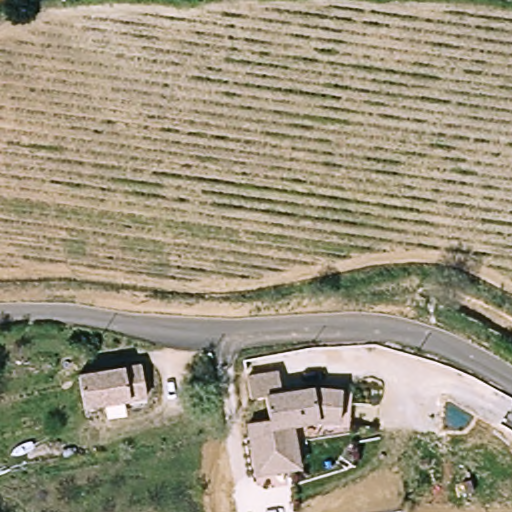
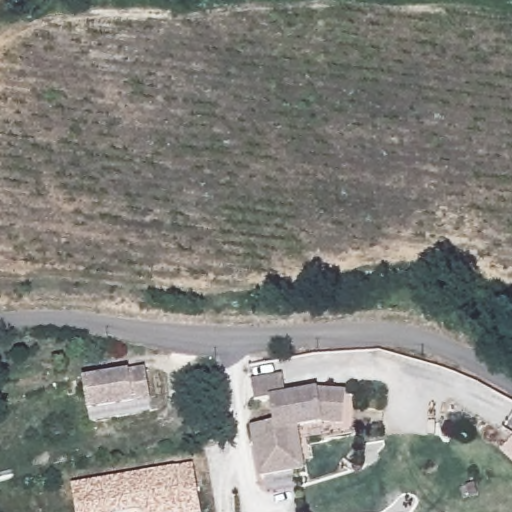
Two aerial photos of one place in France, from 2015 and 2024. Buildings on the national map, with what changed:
unchanged [(80,420),(72,386),(133,374),(140,408),(80,420)]
unchanged [(281,375),(285,395),(316,390),(345,392),(342,423),(322,421),(296,426),(302,467),(260,475),(252,426),(273,422),(269,398),(255,401),(251,380),(281,375)]
new [(143,512),(143,510),(134,512),(75,512),(71,483),(193,462),(201,512),(143,512)]

